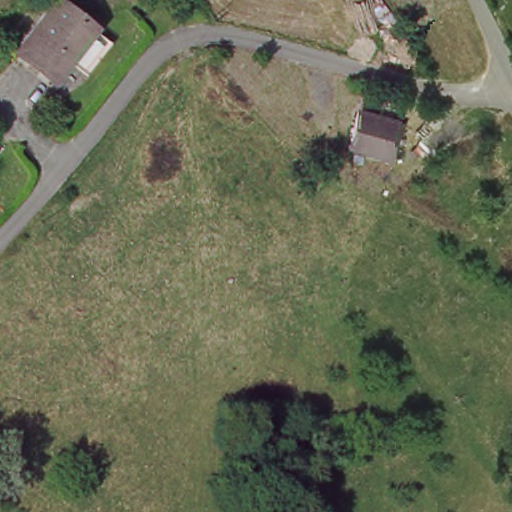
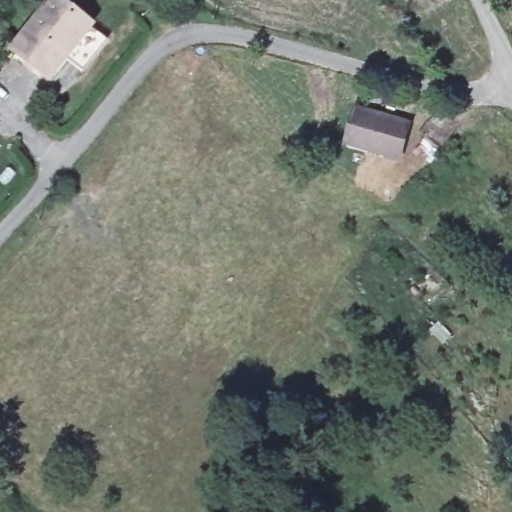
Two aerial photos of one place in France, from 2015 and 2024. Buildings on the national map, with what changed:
unchanged [(7,50),(49,0),(51,0),(103,46),(80,75),(60,61),(42,83),(7,50)]
unchanged [(346,144),(357,110),(390,119),(408,125),(406,133),(393,162),(346,144)]

